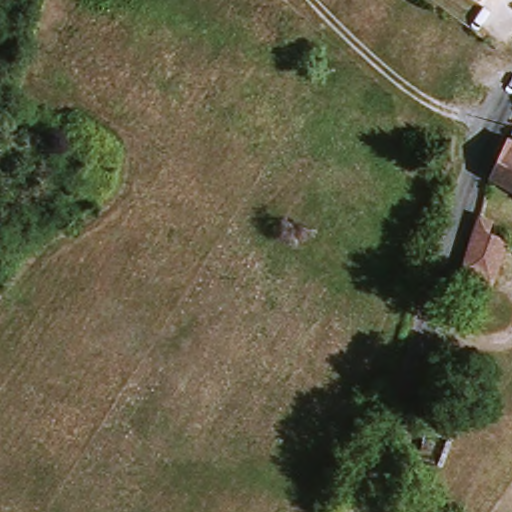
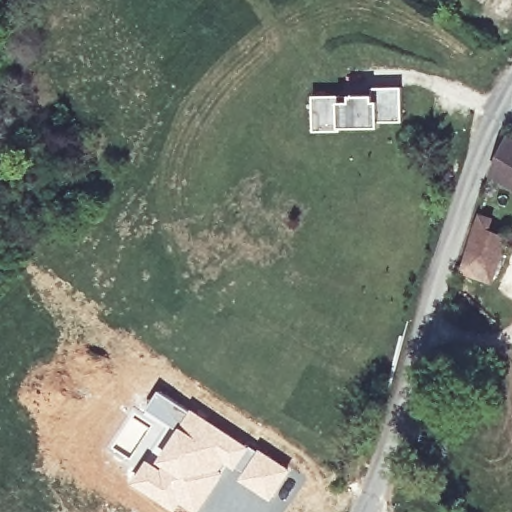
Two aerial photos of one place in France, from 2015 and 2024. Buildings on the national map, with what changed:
new [(350,95),(373,95),(373,88),(402,87),(402,122),(379,122),(379,127),(340,128),(340,131),(313,131),(313,96),(340,96),(350,95)]
unchanged [(489,174),(498,148),(503,140),(512,145),(512,188),(489,174)]
unchanged [(511,227),(508,237),(496,269),(466,257),(481,203),(494,206),(491,220),(511,227)]
new [(154,462),(175,431),(144,410),(158,390),(192,408),(258,450),(241,473),(228,465),(198,512),(193,512),(180,502),(173,512),(129,482),(146,457),(154,462)]
new [(241,473),(258,450),(259,447),(292,470),(271,501),(238,478),(241,473)]
unchanged [(433,460),(426,474),(417,470),(423,455),(433,460)]

